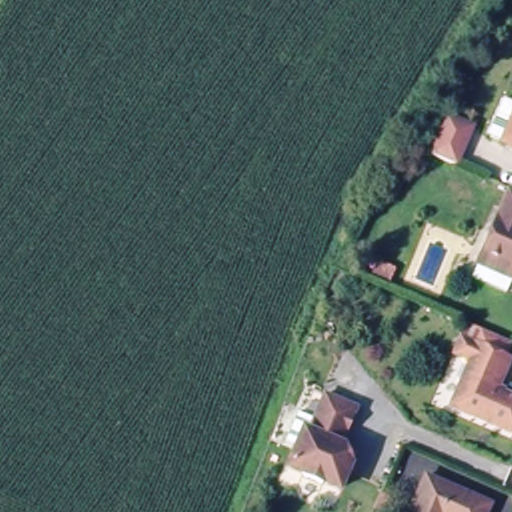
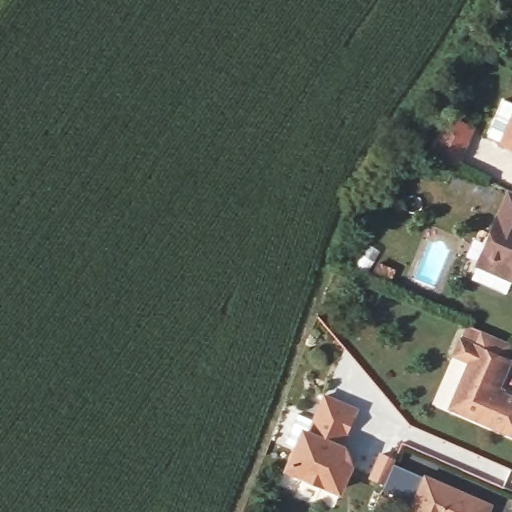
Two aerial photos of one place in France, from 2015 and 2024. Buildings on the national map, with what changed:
unchanged [(496,136),(512,100),(512,144),(510,143),(496,136)]
unchanged [(452,165),(442,160),(427,154),(443,115),(469,126),(452,165)]
unchanged [(476,260),(507,190),(512,192),(512,277),(507,275),(476,260)]
unchanged [(377,263),(396,271),(391,285),(372,277),(377,263)]
unchanged [(498,390),(512,396),(512,433),(453,406),(474,361),(459,354),(467,337),(469,338),(475,325),(488,331),(512,342),(512,354),(510,358),(512,359),(498,390)]
unchanged [(359,407),(343,445),(348,447),(347,452),(350,460),(355,461),(343,488),(328,481),(327,485),(308,477),(310,474),(295,468),(303,446),(292,442),(303,413),(320,420),(329,395),(359,407)]
unchanged [(424,471),(488,499),(483,512),(406,512),(424,471)]

